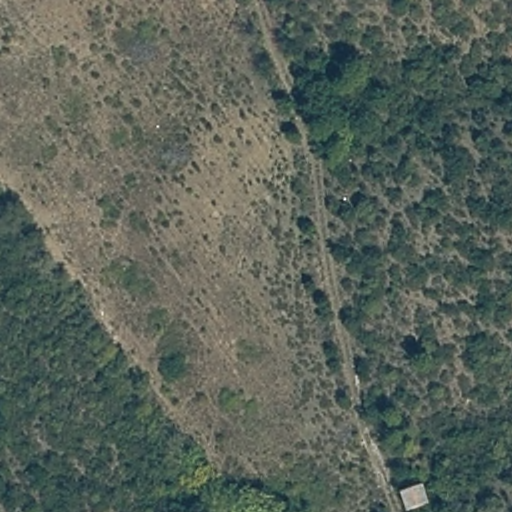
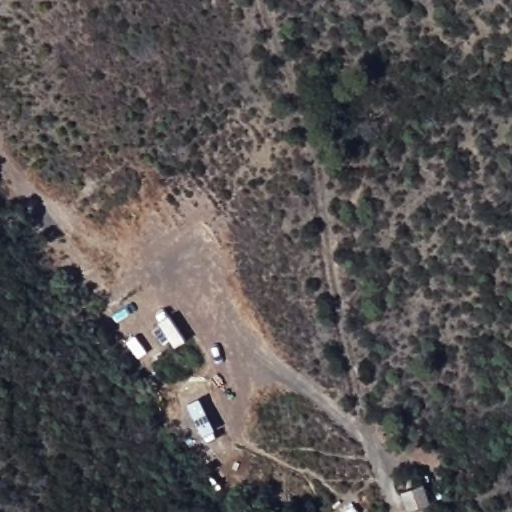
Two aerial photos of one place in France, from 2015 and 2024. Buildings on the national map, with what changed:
unchanged [(431,501),(412,507),(402,485),(425,479),(431,501)]

